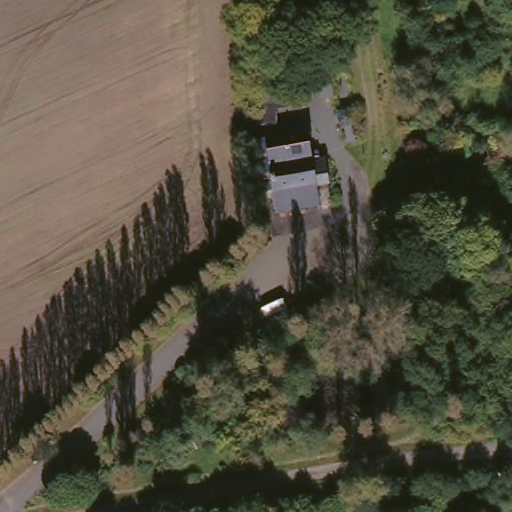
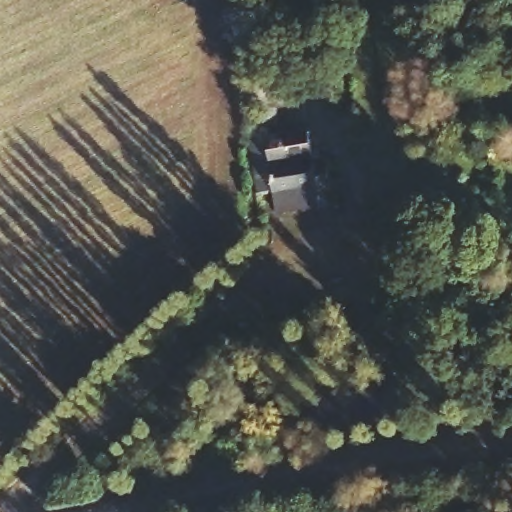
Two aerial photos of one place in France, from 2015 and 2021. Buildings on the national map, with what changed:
unchanged [(287,219),(285,200),(268,201),(267,185),(265,175),(262,142),(313,134),(318,166),(333,164),(337,189),(322,191),(325,212),(287,219)]

